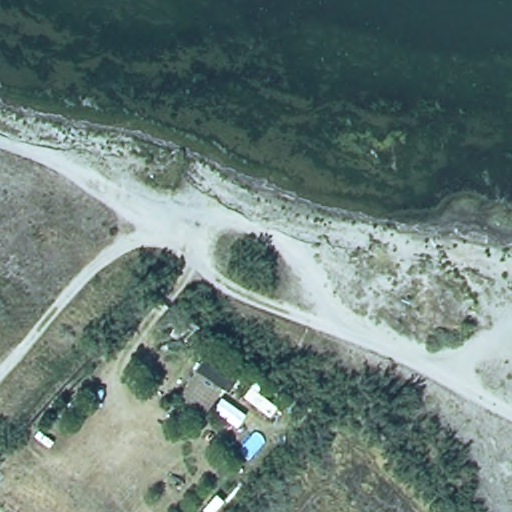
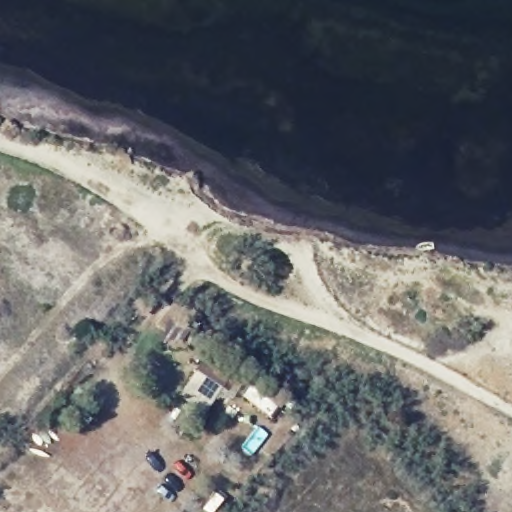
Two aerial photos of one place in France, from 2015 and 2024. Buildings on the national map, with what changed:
unchanged [(235,375),(203,415),(172,393),(201,353),(235,375)]

